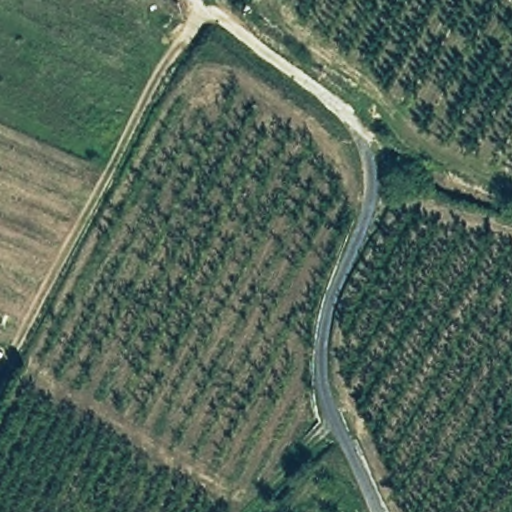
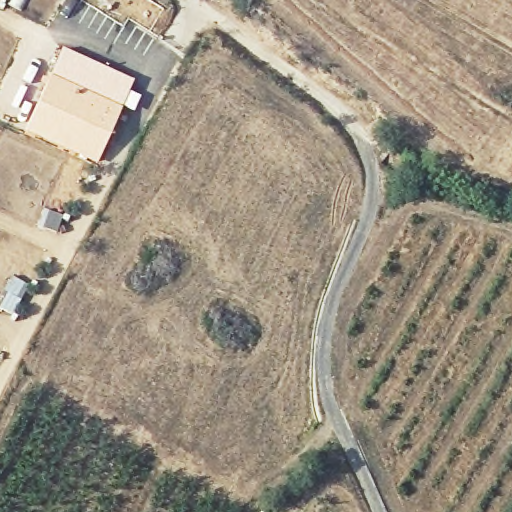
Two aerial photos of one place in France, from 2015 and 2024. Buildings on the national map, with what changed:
new [(121,107),(96,164),(24,132),(49,76),(121,107)]

